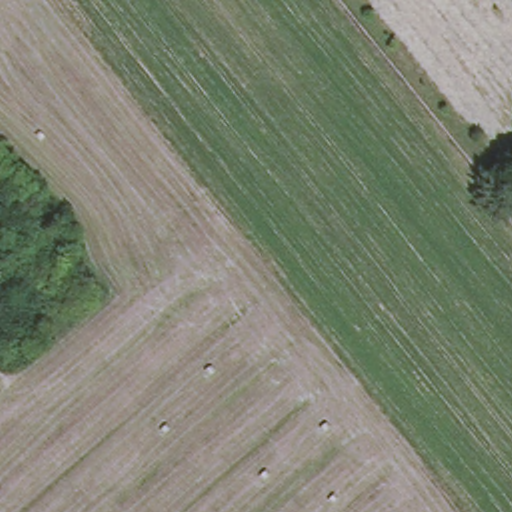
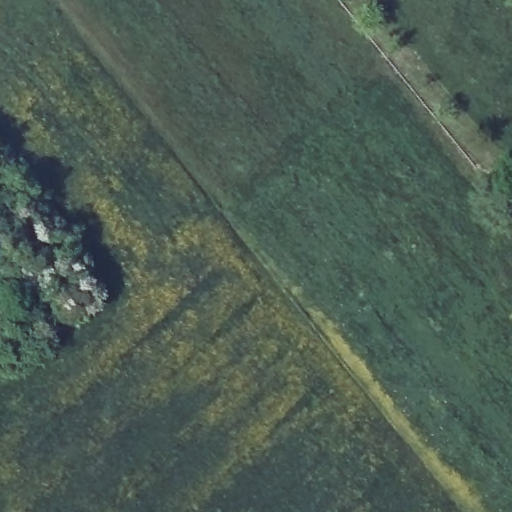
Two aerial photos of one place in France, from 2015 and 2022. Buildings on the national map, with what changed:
unchanged [(0,170),(32,205),(0,222),(0,170)]

